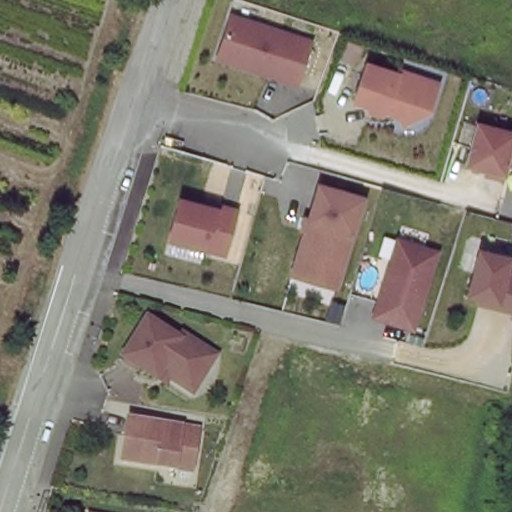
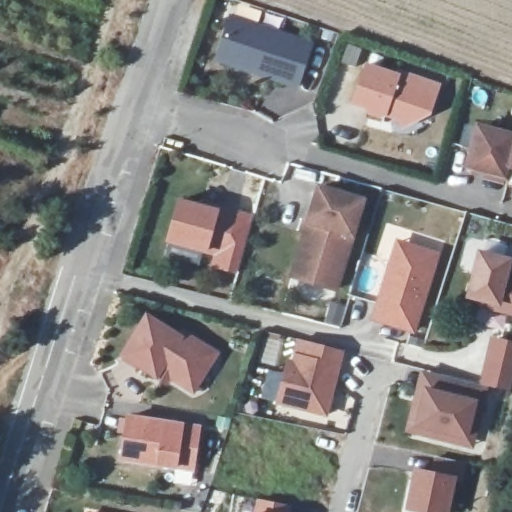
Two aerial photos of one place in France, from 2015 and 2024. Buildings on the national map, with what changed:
unchanged [(301,88),(214,63),(228,16),(316,45),(301,88)]
unchanged [(432,116),(410,128),(355,109),(367,66),(441,89),(432,116)]
unchanged [(508,173),(505,182),(464,171),(475,125),(512,136),(512,174),(508,173)]
unchanged [(338,293),(290,278),(317,184),(367,199),(338,293)]
unchanged [(228,260),(168,244),(180,201),(240,216),(228,260)]
unchanged [(381,303),(376,301),(386,269),(395,240),(401,242),(435,253),(411,329),(377,317),(381,303)]
unchanged [(481,301),(468,297),(479,254),(509,262),(505,277),(512,279),(512,315),(490,309),(480,306),(481,301)]
unchanged [(153,373),(119,352),(144,313),(176,333),(179,329),(196,340),(212,350),(208,358),(190,388),(167,373),(163,379),(153,373)]
new [(288,358),(293,359),(294,353),(297,340),(345,351),(329,418),(277,405),(288,358)]
new [(421,369),(428,371),(480,384),(485,367),(512,374),(507,391),(484,385),(470,437),(469,445),(405,428),(408,421),(412,403),(421,369)]
unchanged [(118,455),(125,413),(196,425),(190,461),(189,467),(172,464),(118,455)]
new [(432,471),(435,456),(467,463),(464,484),(455,483),(449,512),(411,512),(405,511),(414,468),(432,471)]
new [(258,496),(286,501),(284,512),(254,512),(258,496)]
unchanged [(83,506),(119,512),(81,512),(83,506)]

